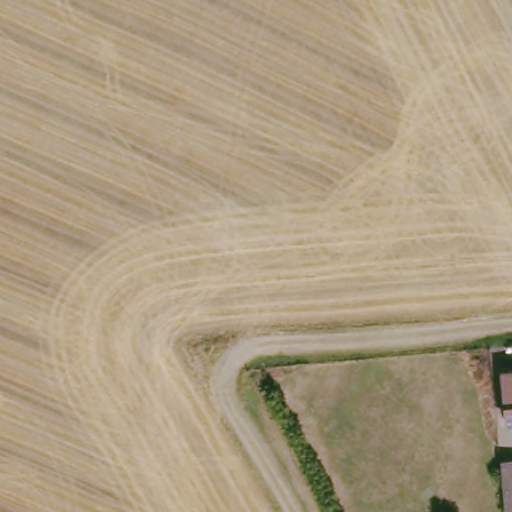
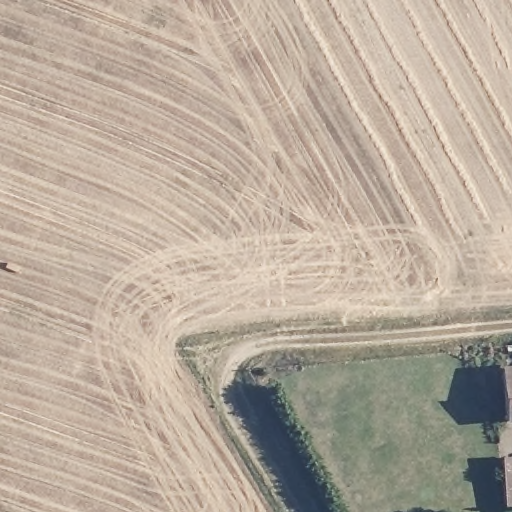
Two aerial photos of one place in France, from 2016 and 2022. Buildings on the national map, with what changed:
unchanged [(500,370),(512,369),(512,418),(503,418),(500,370)]
unchanged [(505,492),(502,456),(512,456),(512,502),(506,503),(505,492)]

